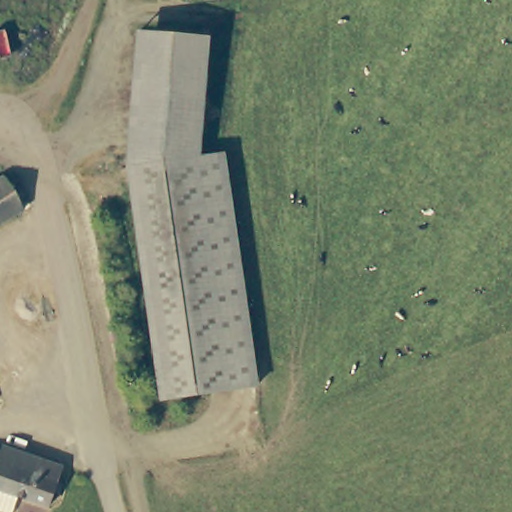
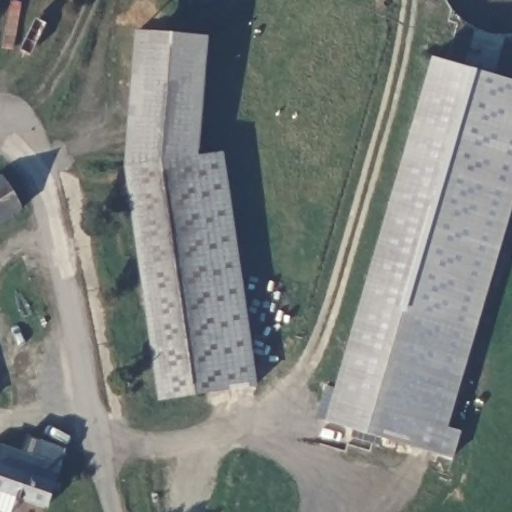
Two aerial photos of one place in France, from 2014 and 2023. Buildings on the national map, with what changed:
unchanged [(129,166),(135,32),(206,35),(199,156),(129,166)]
new [(463,430),(455,458),(325,422),(432,56),(512,80),(512,216),(448,426),(463,430)]
unchanged [(260,384),(165,399),(129,166),(199,156),(225,152),(260,384)]
unchanged [(26,211),(0,227),(0,184),(7,180),(7,182),(26,211)]
unchanged [(2,456),(6,451),(60,471),(57,486),(62,489),(60,496),(52,494),(47,509),(18,498),(13,512),(0,512),(0,455),(2,456)]

